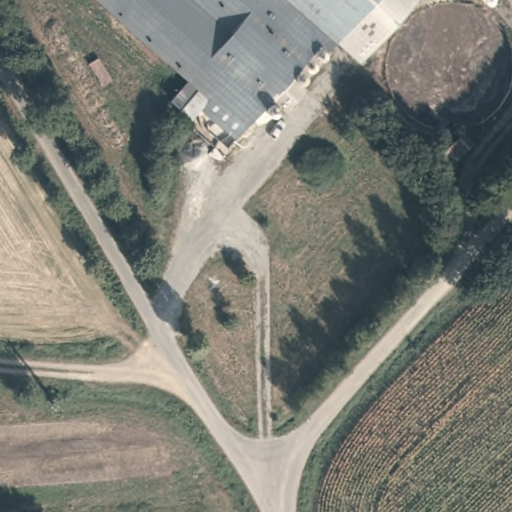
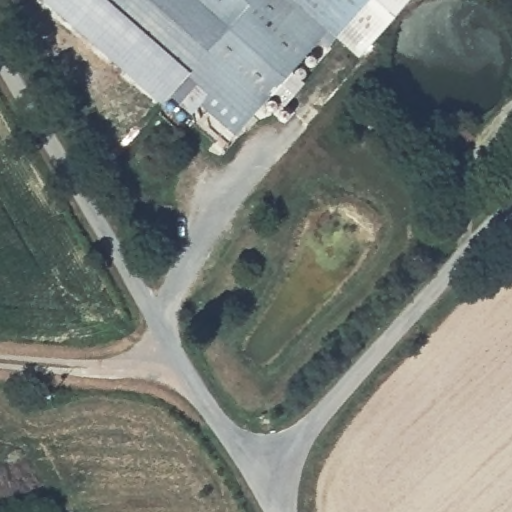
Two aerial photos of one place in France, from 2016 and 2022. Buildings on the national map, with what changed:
new [(43,0),(98,0),(184,76),(165,97),(160,103),(43,0)]
unchanged [(320,49),(312,41),(283,74),(295,83),(275,105),(265,95),(237,125),(184,76),(98,0),(365,0),(343,23),(320,49)]
unchanged [(405,0),(366,44),(343,23),(365,0),(405,0)]
unchanged [(184,76),(237,125),(228,136),(192,104),(183,114),(165,97),(184,76)]

